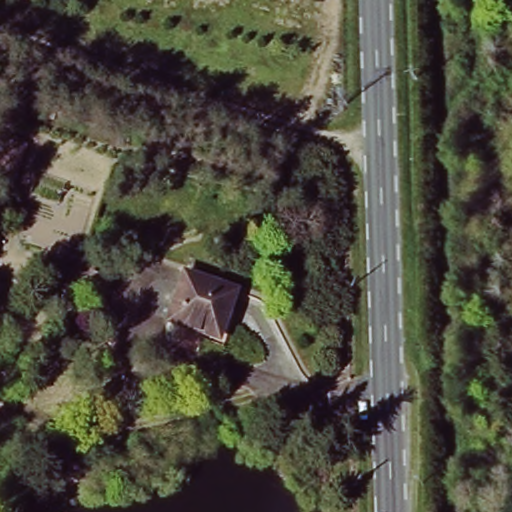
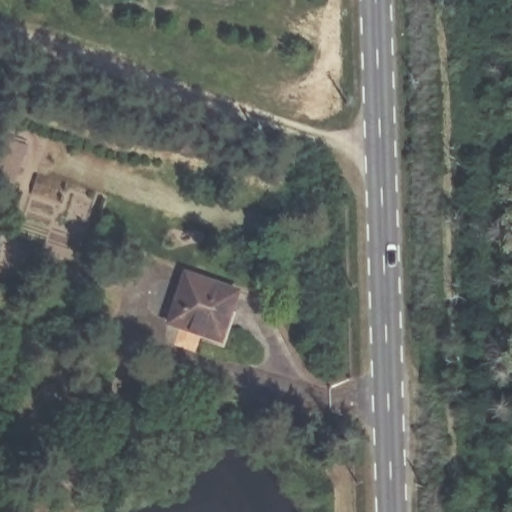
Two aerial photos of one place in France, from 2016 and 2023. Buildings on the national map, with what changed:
unchanged [(185,273),(235,288),(220,336),(170,321),(185,273)]
unchanged [(76,456),(79,468),(52,475),(49,462),(76,456)]

